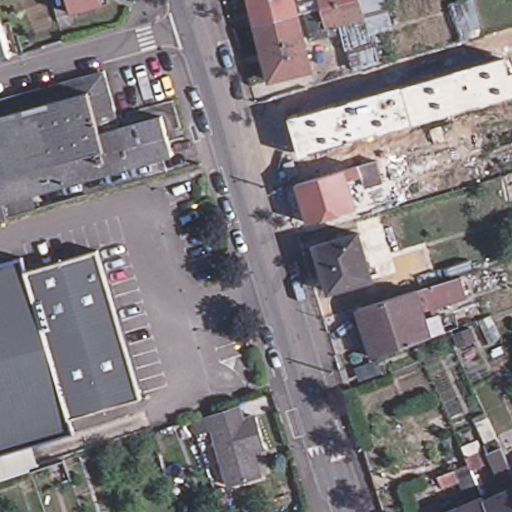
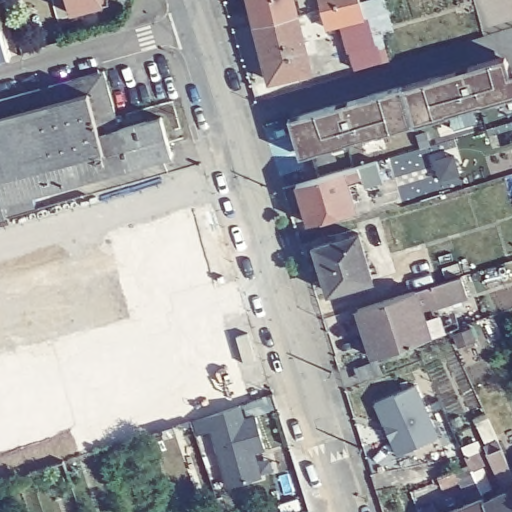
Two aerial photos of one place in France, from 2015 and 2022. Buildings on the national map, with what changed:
unchanged [(104,2),(104,3),(72,12),(68,0),(103,0),(104,0),(104,2)]
unchanged [(250,29),(243,0),(285,0),(286,3),(297,0),(349,0),(350,4),(355,23),(316,32),(311,14),(290,19),(304,77),(265,86),(250,29)]
unchanged [(2,19),(7,36),(2,38),(8,56),(0,59),(0,20),(2,19)]
unchanged [(395,84),(395,85),(447,70),(461,66),(494,56),(499,55),(500,60),(503,72),(512,70),(512,94),(510,94),(472,105),(472,104),(442,113),(442,114),(406,124),(371,134),(370,133),(340,141),(340,143),(303,153),(293,156),(282,117),(292,114),(329,103),(343,99),(395,84)]
unchanged [(0,180),(0,101),(102,71),(119,128),(121,128),(132,168),(83,182),(76,159),(0,180)]
unchanged [(160,117),(171,157),(132,168),(121,128),(160,117)]
unchanged [(3,204),(7,219),(0,221),(0,180),(76,159),(83,182),(3,204)]
unchanged [(304,228),(293,190),(292,188),(381,163),(381,164),(384,174),(375,177),(377,186),(360,191),(357,182),(342,185),(350,214),(304,228)]
unchanged [(373,287),(328,298),(315,250),(360,239),(373,287)]
demolished [(33,301),(24,271),(95,251),(104,280),(33,301)]
demolished [(71,434),(0,455),(0,263),(20,258),(24,271),(33,301),(67,421),(71,434)]
unchanged [(456,277),(463,298),(451,301),(424,309),(427,320),(433,319),(439,335),(424,340),(410,291),(445,280),(456,277)]
demolished [(138,401),(67,421),(33,301),(104,280),(138,401)]
unchanged [(424,340),(408,346),(367,361),(352,309),(410,291),(424,340)]
unchanged [(492,335),(486,338),(481,325),(487,323),(492,335)]
new [(410,391),(432,443),(390,460),(384,445),(386,444),(380,429),(378,430),(369,408),(410,391)]
unchanged [(261,455),(249,458),(257,484),(225,494),(208,436),(193,440),(188,426),(203,421),(235,411),(239,427),(251,423),(261,455)]
unchanged [(450,445),(438,449),(433,438),(445,433),(450,445)]
unchanged [(508,446),(506,442),(512,439),(512,489),(496,451),(508,446)]
unchanged [(479,504),(470,483),(456,488),(455,486),(449,488),(447,481),(477,468),(473,459),(492,452),(497,466),(486,471),(492,488),(486,491),(495,512),(459,512),(479,504)]
unchanged [(499,501),(512,496),(512,512),(503,512),(499,501)]

